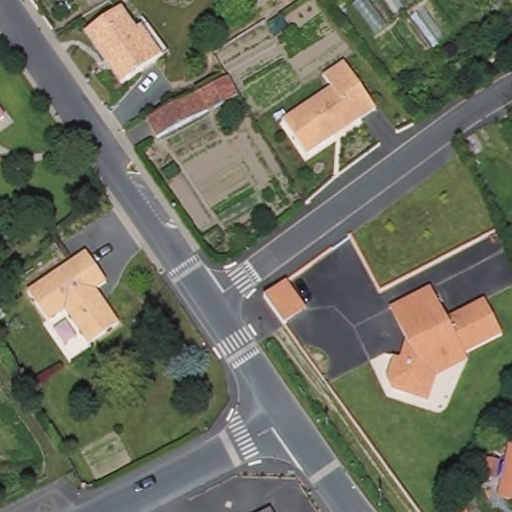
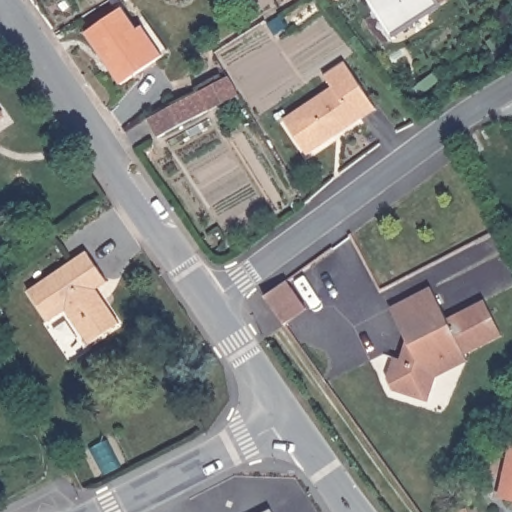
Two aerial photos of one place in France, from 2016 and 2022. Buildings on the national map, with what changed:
new [(394,34),(396,37),(394,38),(369,0),(435,0),(439,5),(394,34)]
unchanged [(86,34),(122,10),(135,32),(142,28),(145,32),(162,58),(154,63),(120,86),(86,34)]
unchanged [(333,83),(325,71),(346,57),(377,106),(306,151),(283,115),(333,83)]
unchanged [(223,79),(235,95),(152,135),(145,120),(144,117),(176,101),(223,79)]
unchanged [(3,116),(0,118),(0,112),(3,116)]
unchanged [(87,254),(106,284),(95,292),(118,326),(88,346),(65,312),(48,323),(28,294),(87,254)]
unchanged [(289,280),(309,309),(287,324),(267,296),(289,280)]
unchanged [(428,287),(443,319),(481,300),(499,336),(461,356),(464,362),(431,379),(424,402),(388,391),(381,380),(389,359),(396,361),(403,342),(386,307),(428,287)]
unchanged [(510,457),(512,457),(512,512),(503,512),(481,507),(484,494),(493,453),(510,457)]
unchanged [(266,505),(269,512),(253,512),(266,505)]

